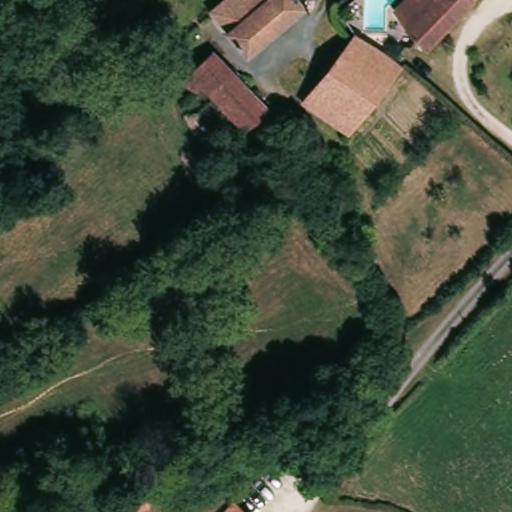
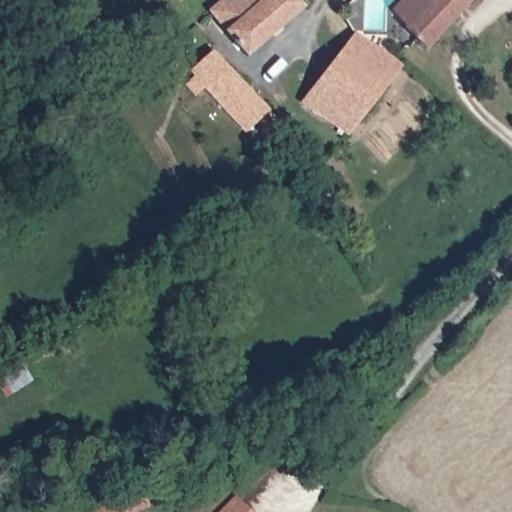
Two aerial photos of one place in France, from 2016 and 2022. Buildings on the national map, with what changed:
unchanged [(246,54),(213,14),(210,10),(223,0),(305,0),(309,5),(246,54)]
unchanged [(407,26),(396,8),(404,0),(474,0),(431,44),(407,26)]
unchanged [(348,136),(302,103),(357,29),(394,56),(403,63),(348,136)]
unchanged [(281,123),(280,126),(270,135),(260,124),(251,129),(211,85),(198,95),(188,83),(200,74),(196,69),(216,51),(281,123)]
unchanged [(220,488),(246,512),(196,512),(220,488)]
unchanged [(145,491),(152,509),(143,512),(88,512),(145,491)]

